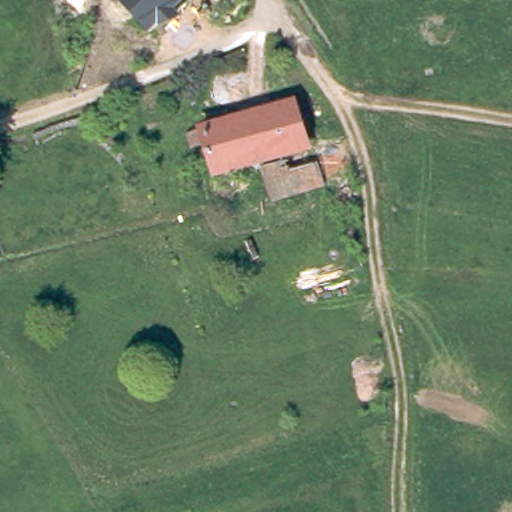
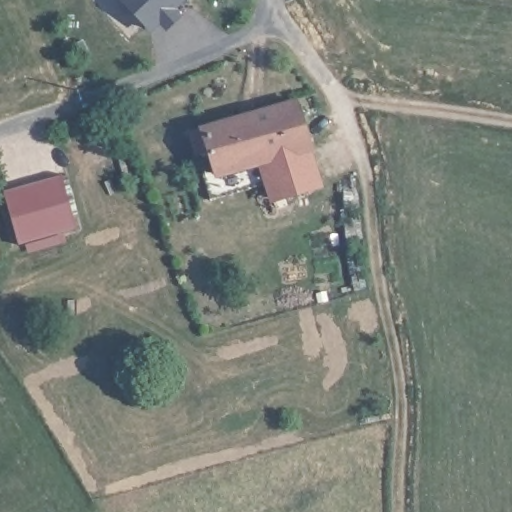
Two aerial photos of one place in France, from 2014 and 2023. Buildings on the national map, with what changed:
new [(175,9),(182,17),(167,31),(160,25),(153,32),(119,0),(184,0),(175,9)]
unchanged [(217,165),(208,133),(196,136),(193,124),(295,93),(309,140),(261,153),(217,165)]
unchanged [(309,140),(319,174),(272,188),(261,153),(309,140)]
new [(61,176),(76,230),(17,246),(2,192),(61,176)]

